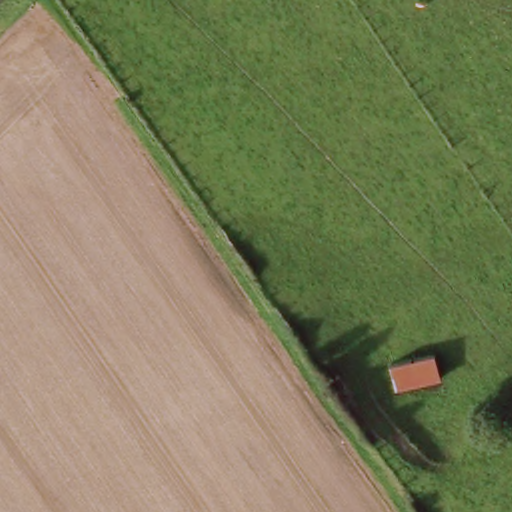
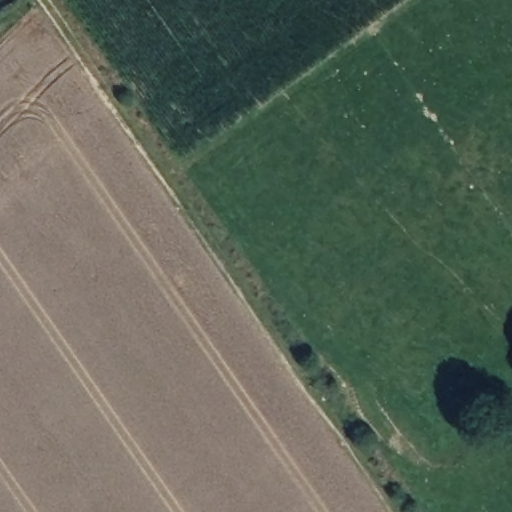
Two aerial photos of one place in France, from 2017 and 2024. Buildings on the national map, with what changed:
demolished [(390,364),(433,355),(438,379),(395,389),(390,364)]

